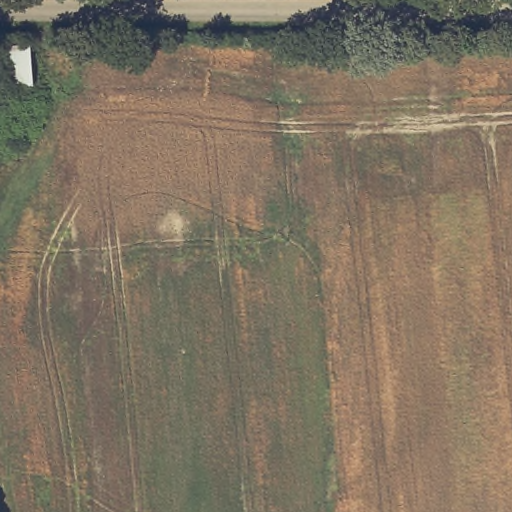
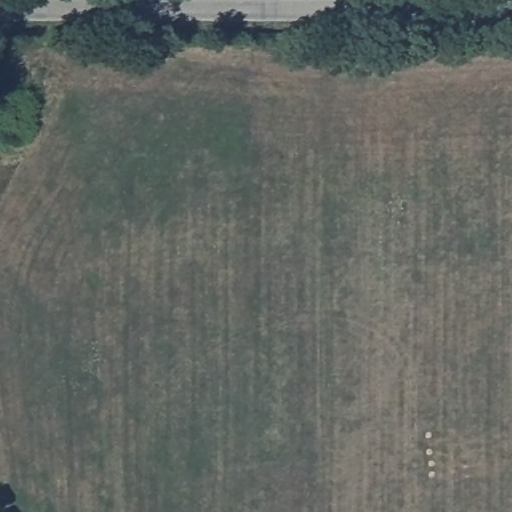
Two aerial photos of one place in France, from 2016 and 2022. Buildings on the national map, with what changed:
unchanged [(23,82),(0,82),(0,41),(23,41),(23,82)]
unchanged [(10,99),(27,99),(25,120),(13,120),(14,141),(0,141),(0,107),(9,107),(10,99)]

